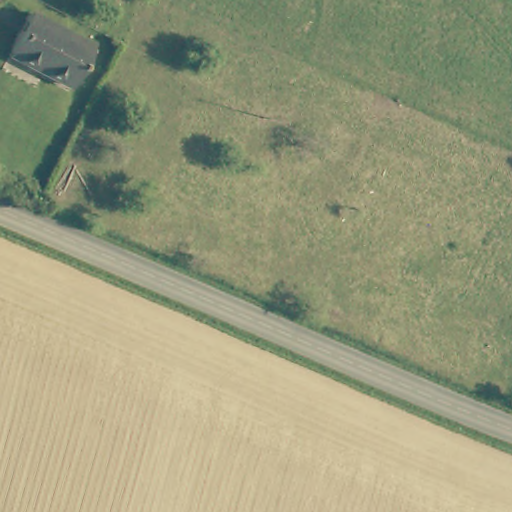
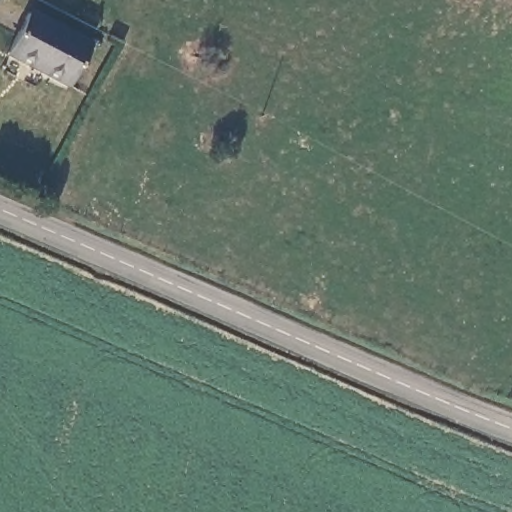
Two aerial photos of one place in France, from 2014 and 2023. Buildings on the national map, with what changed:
unchanged [(28,25),(37,7),(47,11),(100,38),(77,80),(17,48),(28,25)]

